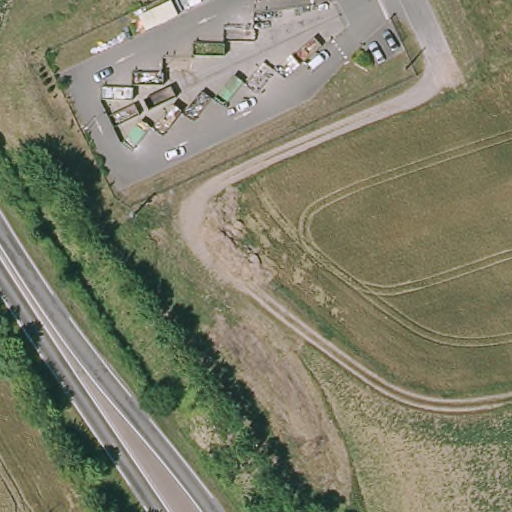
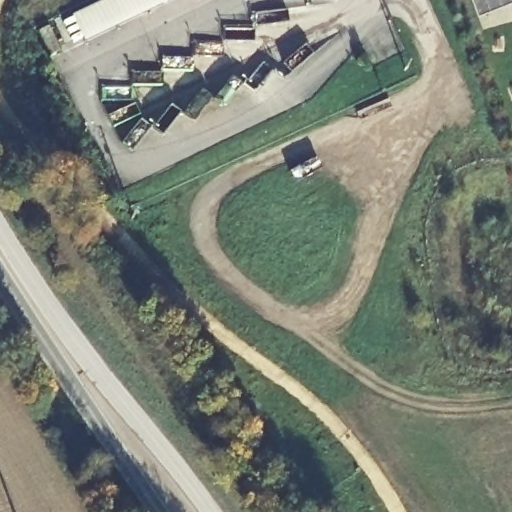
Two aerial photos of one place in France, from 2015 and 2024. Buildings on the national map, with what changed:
new [(102,0),(165,0),(83,38),(73,14),(102,0)]

